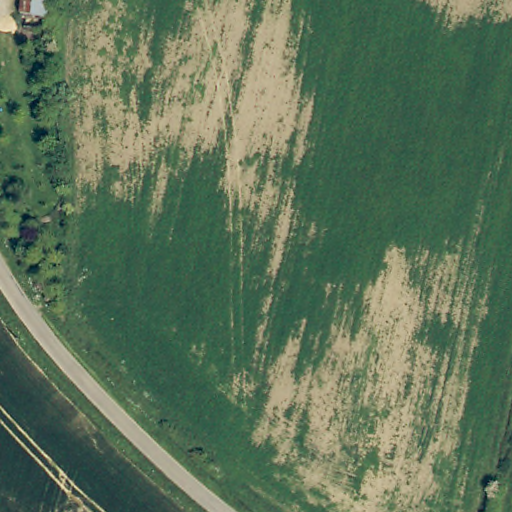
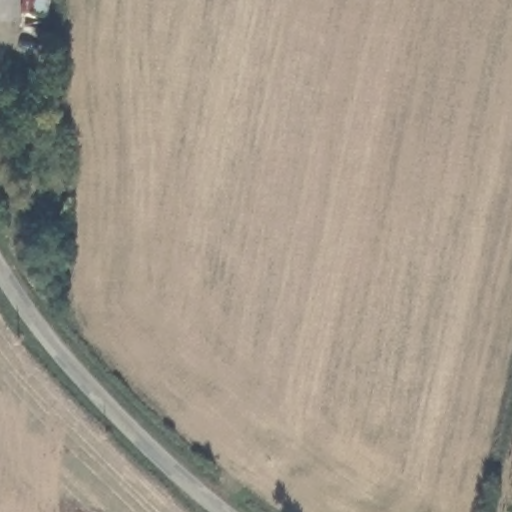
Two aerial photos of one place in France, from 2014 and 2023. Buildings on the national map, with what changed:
unchanged [(24,25),(26,0),(52,0),(50,28),(24,25)]

